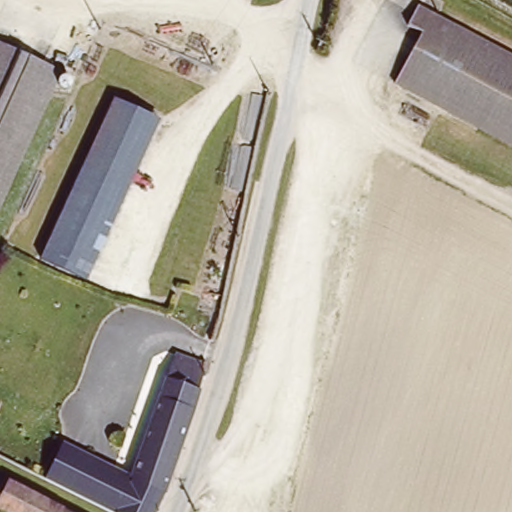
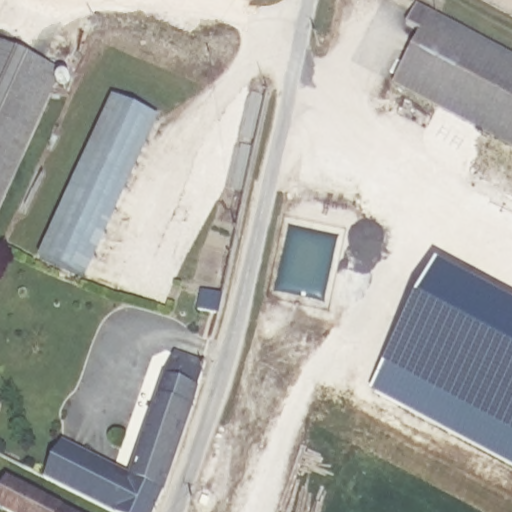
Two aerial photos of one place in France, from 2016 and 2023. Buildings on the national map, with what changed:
unchanged [(418,10),(512,61),(512,148),(399,86),(426,35),(409,26),(418,10)]
unchanged [(0,208),(0,40),(66,73),(0,208)]
unchanged [(42,258),(118,99),(163,121),(87,280),(42,258)]
new [(375,394),(442,268),(512,305),(512,466),(375,394)]
unchanged [(178,356),(206,366),(188,429),(165,494),(135,480),(178,356)]
unchanged [(112,512),(44,477),(60,442),(135,480),(119,512),(112,512)]
unchanged [(157,512),(119,512),(135,480),(165,494),(157,512)]
unchanged [(11,481),(66,512),(2,512),(0,511),(0,493),(4,495),(11,481)]

